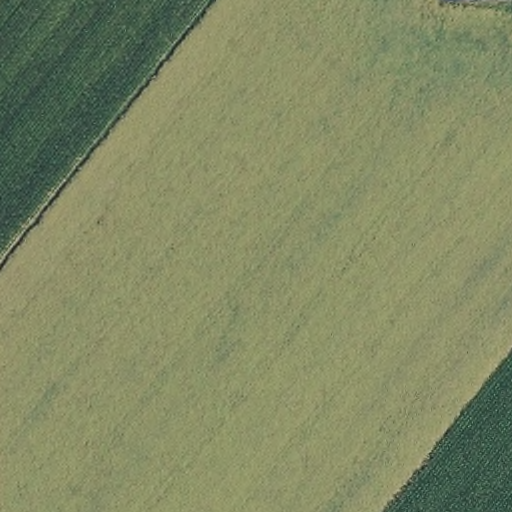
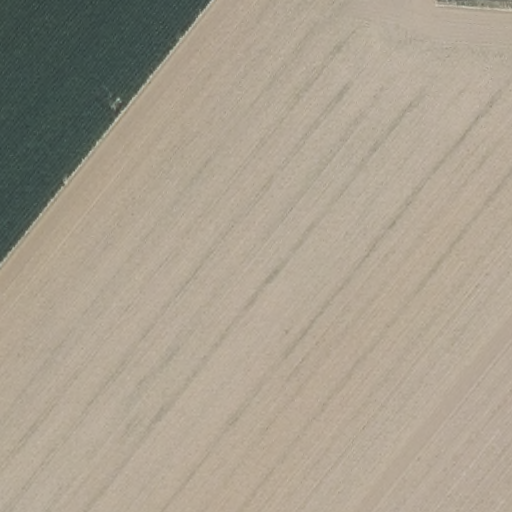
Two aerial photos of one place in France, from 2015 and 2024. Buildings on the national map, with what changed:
[]

